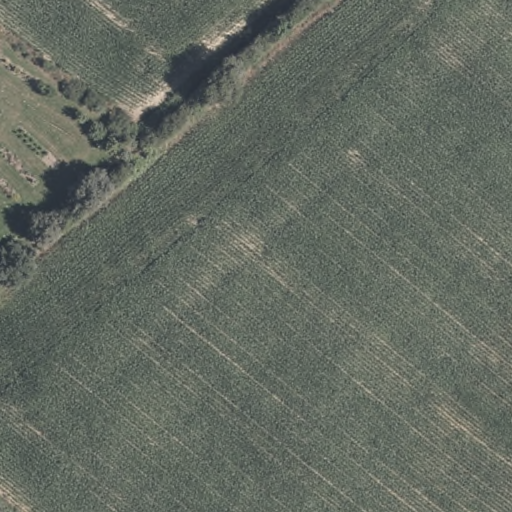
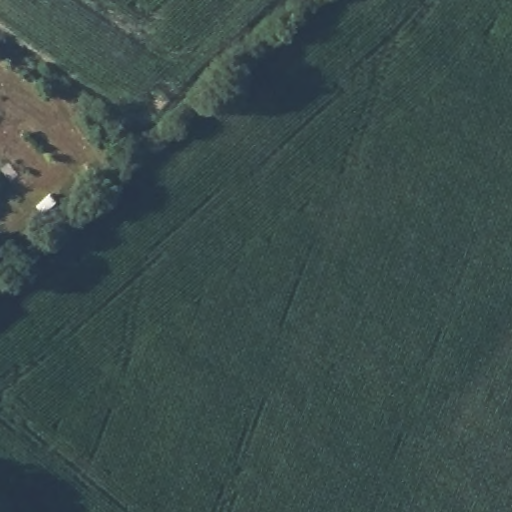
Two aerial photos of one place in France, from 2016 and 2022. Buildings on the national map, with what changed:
[]

